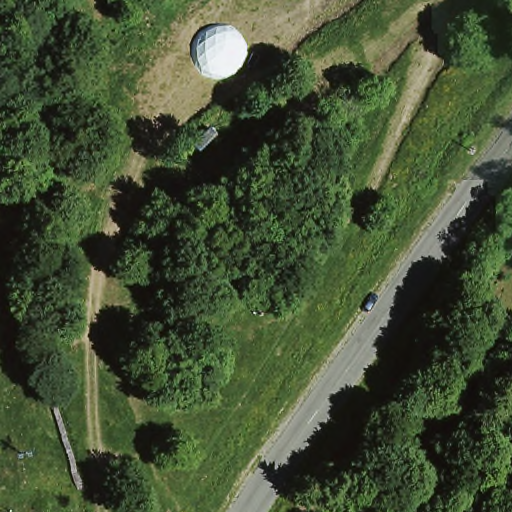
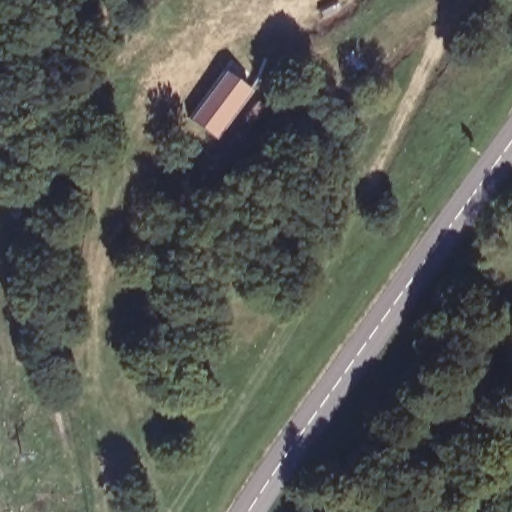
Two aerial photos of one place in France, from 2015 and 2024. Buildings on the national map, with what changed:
new [(226,71),(251,90),(214,140),(189,119),(226,71)]
unchanged [(509,410),(512,404),(512,412),(509,410)]

